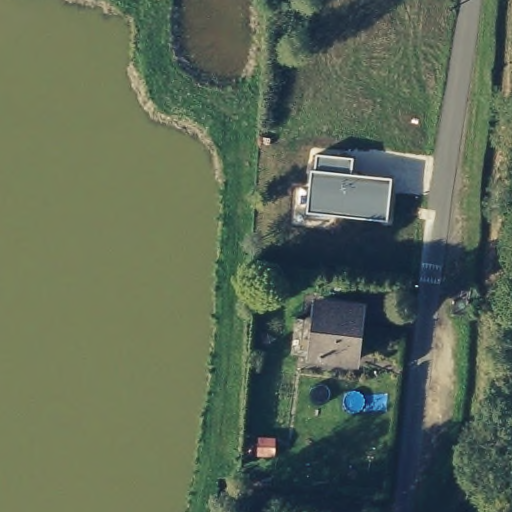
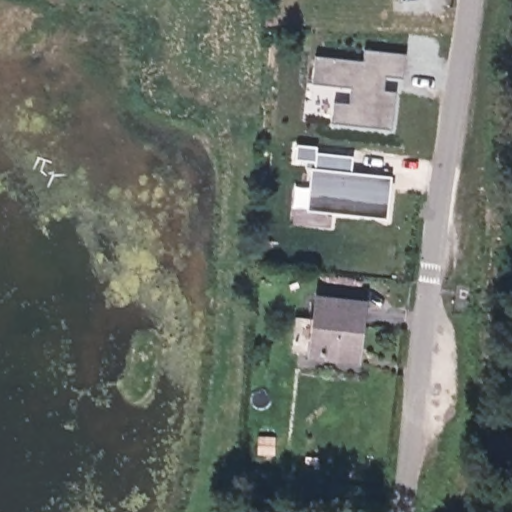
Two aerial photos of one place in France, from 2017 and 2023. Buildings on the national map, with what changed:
new [(315,57),(362,62),(364,50),(405,54),(403,78),(379,76),(377,90),(396,91),(392,131),(331,125),(333,102),(349,104),(350,89),(312,84),(315,57)]
unchanged [(312,169),(317,169),(318,154),(355,157),(352,173),(392,178),(388,220),(307,211),(312,169)]
unchanged [(350,351),(307,346),(312,291),(357,296),(350,351)]

